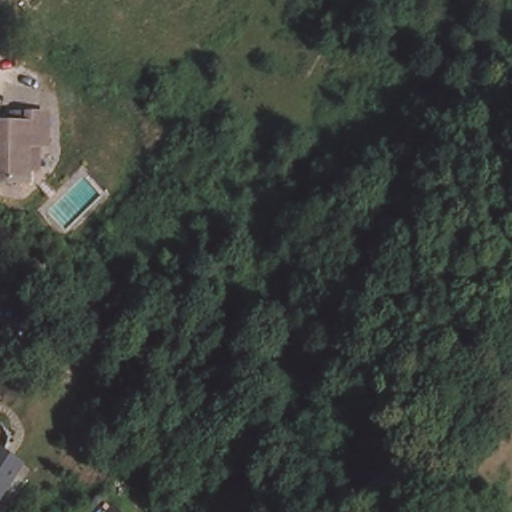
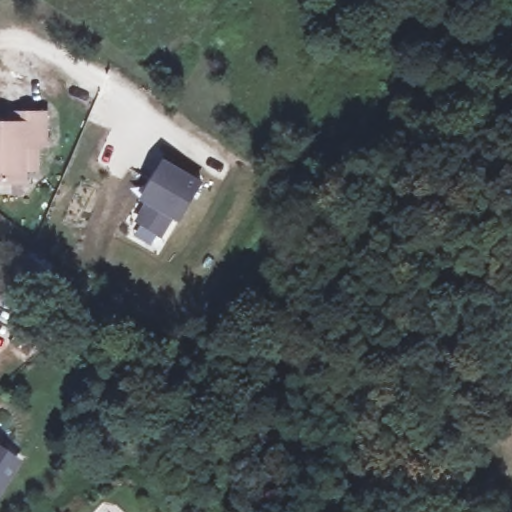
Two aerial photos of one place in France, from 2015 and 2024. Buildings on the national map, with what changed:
unchanged [(19,183),(0,183),(0,127),(7,127),(8,116),(39,116),(39,150),(32,150),(32,172),(19,171),(19,183)]
new [(145,202),(140,199),(165,157),(204,181),(180,222),(174,219),(163,238),(134,221),(145,202)]
new [(52,279),(69,291),(62,300),(53,313),(37,301),(46,288),(52,279)]
unchanged [(0,487),(0,448),(17,458),(0,487)]

